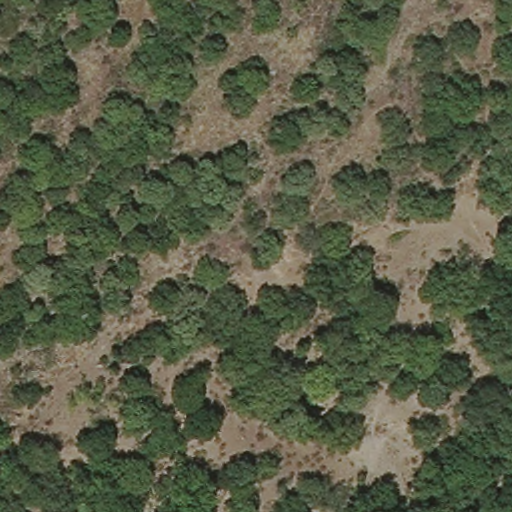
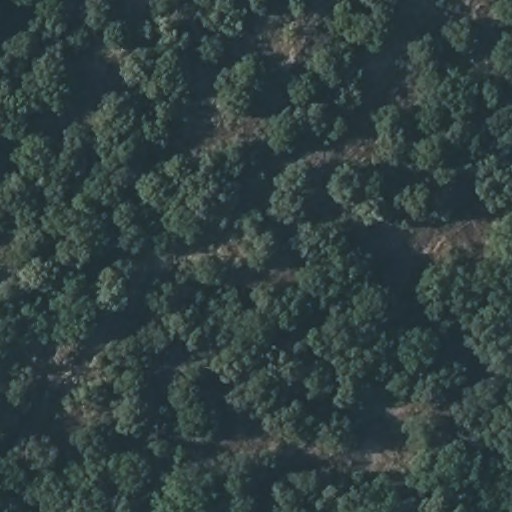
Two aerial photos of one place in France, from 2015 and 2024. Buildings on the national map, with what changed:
[]

